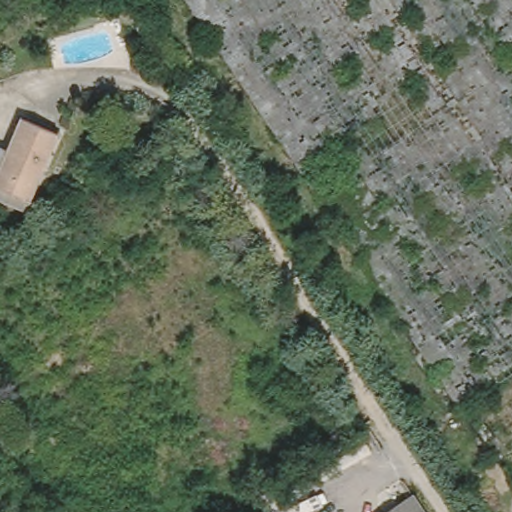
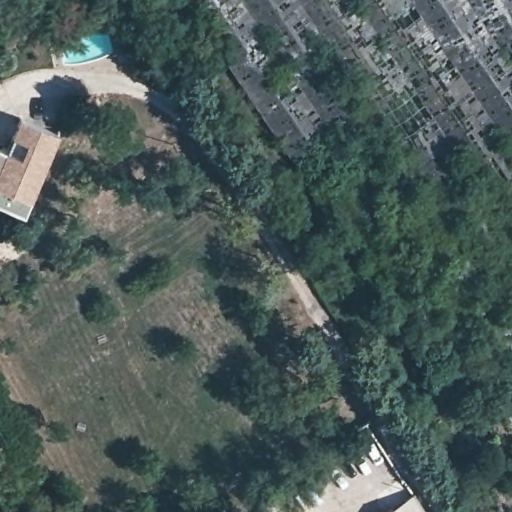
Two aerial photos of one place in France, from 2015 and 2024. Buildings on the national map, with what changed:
unchanged [(512,384),(461,417),(185,0),(512,0),(512,384)]
unchanged [(0,200),(0,150),(1,147),(8,150),(21,118),(60,135),(32,201),(28,212),(0,200)]
unchanged [(427,512),(385,512),(415,493),(427,512)]

